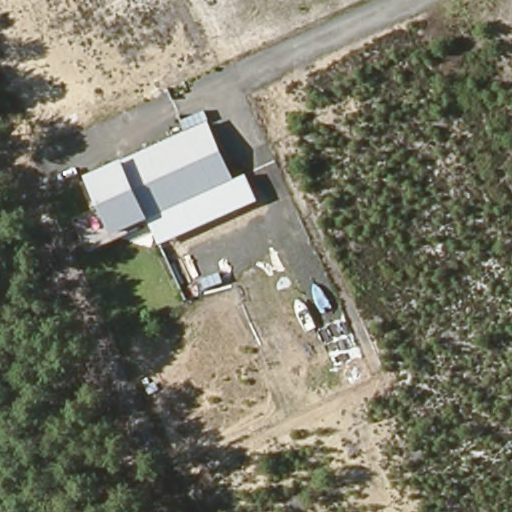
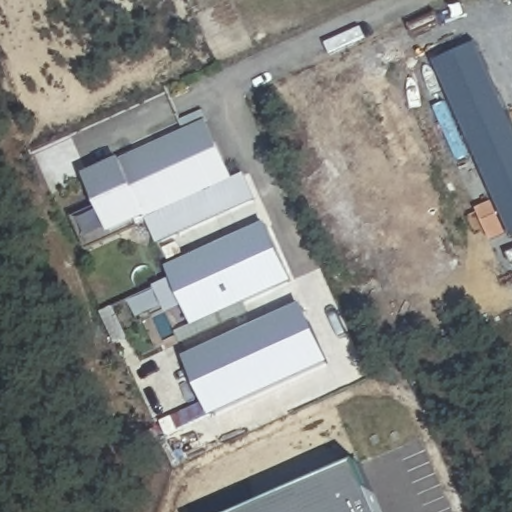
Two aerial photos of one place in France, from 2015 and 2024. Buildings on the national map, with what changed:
new [(512,124),(512,230),(509,231),(432,64),(475,44),(512,124)]
unchanged [(210,122),(235,177),(137,222),(117,231),(105,206),(92,176),(210,122)]
new [(246,173),(258,201),(160,245),(149,217),(235,177),(246,173)]
new [(105,206),(117,231),(137,222),(140,228),(91,251),(76,218),(105,206)]
new [(268,224),(295,283),(195,328),(168,269),(268,224)]
new [(330,362),(167,436),(161,422),(206,402),(187,358),(304,305),(318,335),(330,362)]
new [(252,512),(362,464),(383,512),(252,512)]

